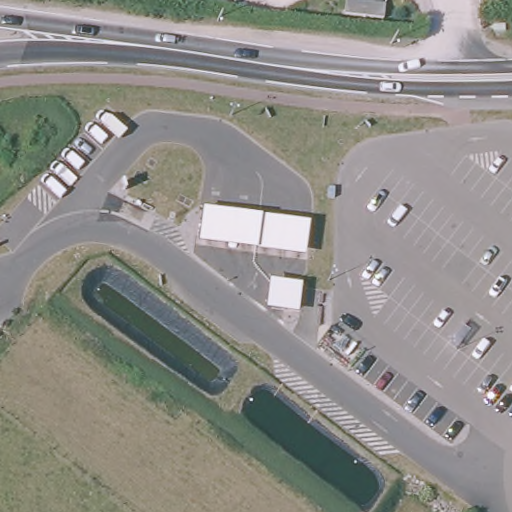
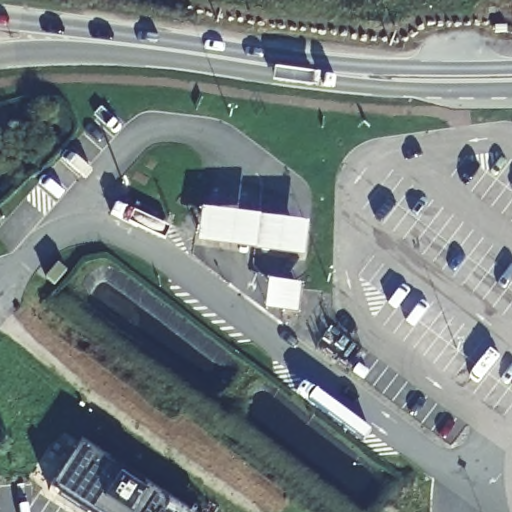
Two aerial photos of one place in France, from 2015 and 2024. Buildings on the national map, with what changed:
unchanged [(308,224),(304,258),(256,251),(198,245),(202,210),(260,217),(308,224)]
unchanged [(301,285),(298,314),(265,310),(269,281),(301,285)]
new [(40,512),(23,499),(79,432),(186,512),(40,512)]

